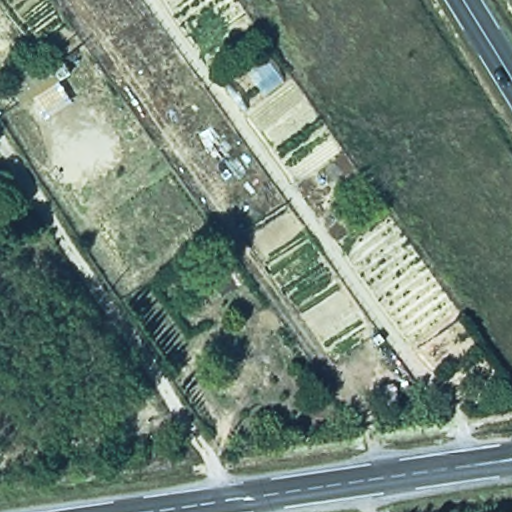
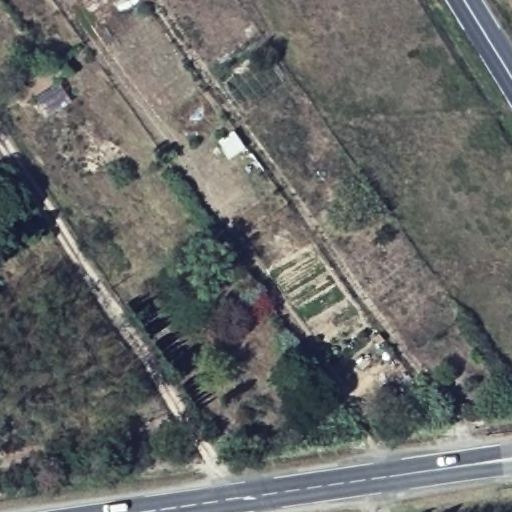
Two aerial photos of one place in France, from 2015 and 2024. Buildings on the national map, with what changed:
unchanged [(44,61),(56,82),(20,106),(8,84),(44,61)]

